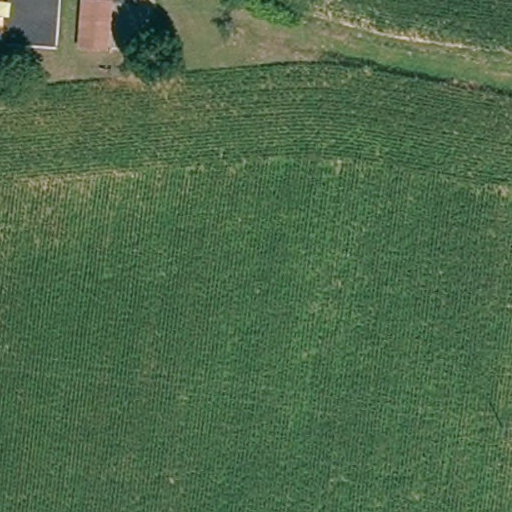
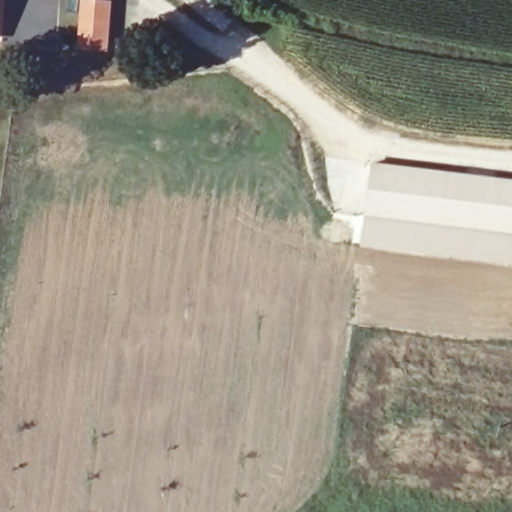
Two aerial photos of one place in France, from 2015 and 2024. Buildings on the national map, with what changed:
unchanged [(84,0),(111,0),(109,47),(82,46),(84,0)]
new [(512,230),(366,212),(372,160),(512,178),(512,230)]
new [(512,263),(362,244),(366,212),(512,230),(512,263)]

